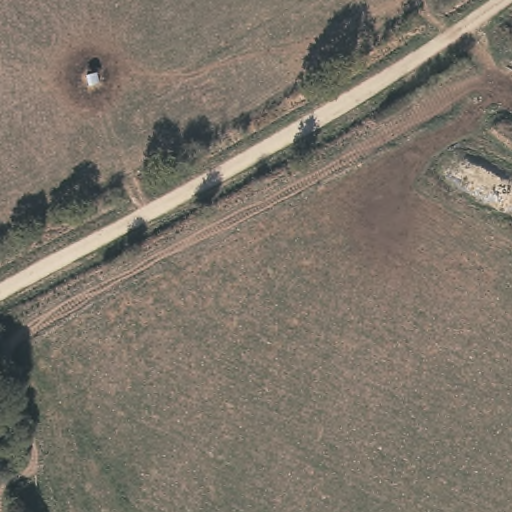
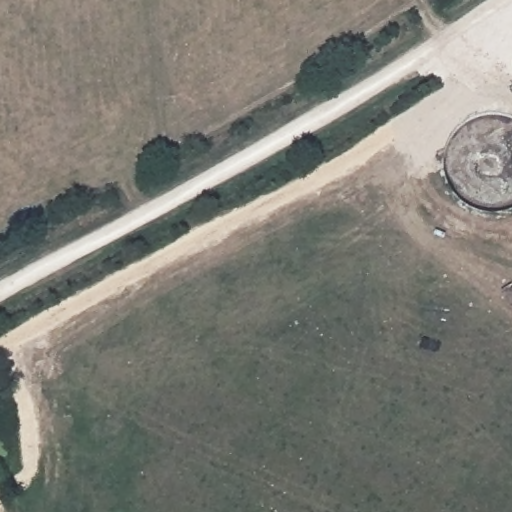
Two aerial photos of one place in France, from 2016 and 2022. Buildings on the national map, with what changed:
[]

